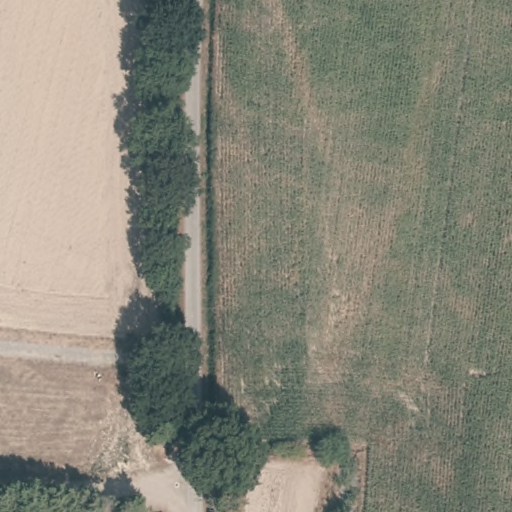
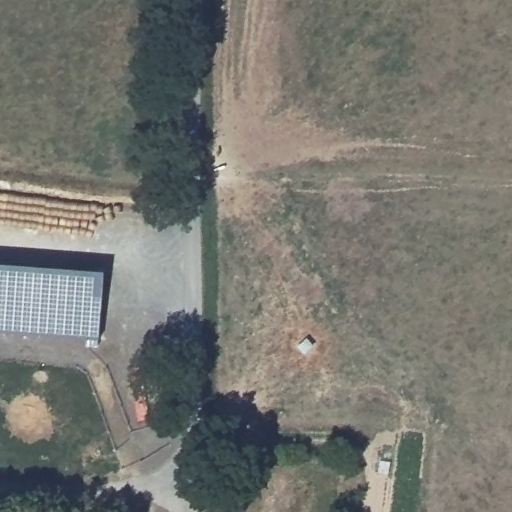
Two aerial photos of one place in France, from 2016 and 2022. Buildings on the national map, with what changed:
new [(99,340),(0,332),(0,264),(104,271),(99,340)]

